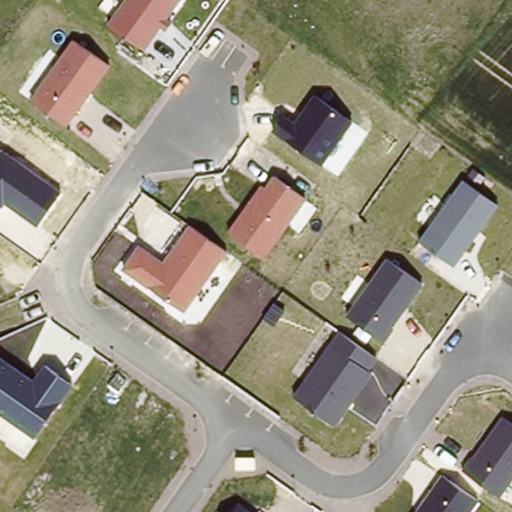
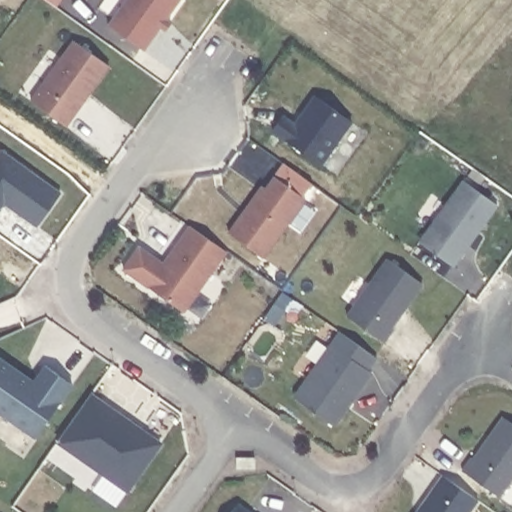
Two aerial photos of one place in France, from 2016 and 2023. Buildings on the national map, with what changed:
unchanged [(123,0),(179,0),(145,49),(106,23),(123,0)]
unchanged [(27,99),(70,37),(110,65),(65,126),(27,99)]
unchanged [(286,141),(317,96),(353,121),(322,167),(286,141)]
unchanged [(5,203),(0,209),(0,148),(62,194),(37,226),(5,203)]
unchanged [(228,230),(270,170),(307,198),(265,255),(228,230)]
unchanged [(418,242),(462,179),(498,204),(454,266),(418,242)]
unchanged [(120,268),(138,243),(163,260),(188,223),(227,252),(185,312),(120,268)]
unchanged [(345,315),(385,257),(423,285),(385,342),(345,315)]
unchanged [(293,395),(332,341),(374,371),(334,424),(293,395)]
unchanged [(0,413),(0,353),(33,378),(45,361),(75,384),(33,437),(0,413)]
new [(132,425),(160,444),(156,450),(127,491),(57,441),(90,395),(132,425)]
unchanged [(499,413),(512,423),(512,478),(499,496),(461,468),(499,413)]
unchanged [(440,472),(479,499),(470,512),(413,512),(440,472)]
unchanged [(240,500),(256,512),(230,512),(240,500)]

